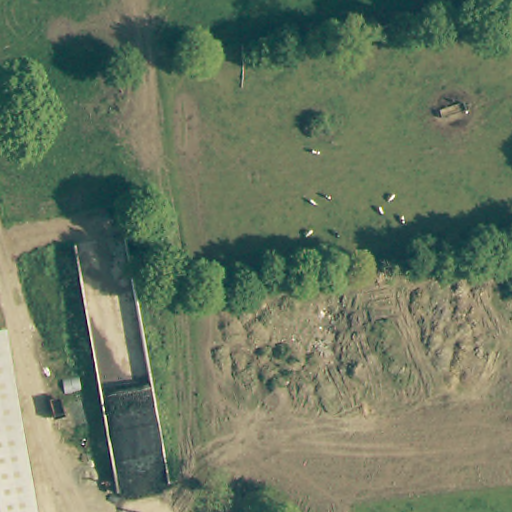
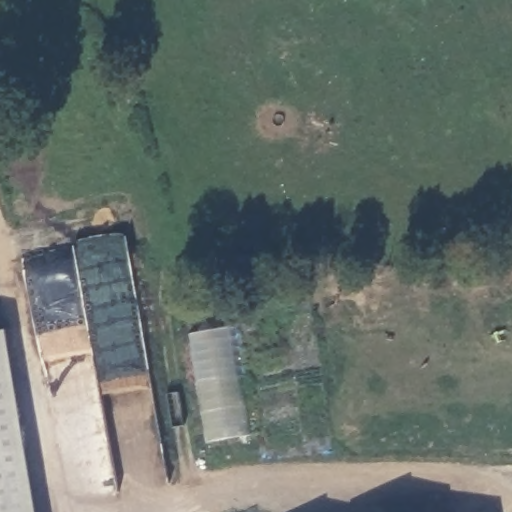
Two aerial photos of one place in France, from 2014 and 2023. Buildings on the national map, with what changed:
new [(233,327),(251,438),(206,445),(186,335),(233,327)]
unchanged [(5,332),(35,512),(0,512),(0,332),(5,332)]

